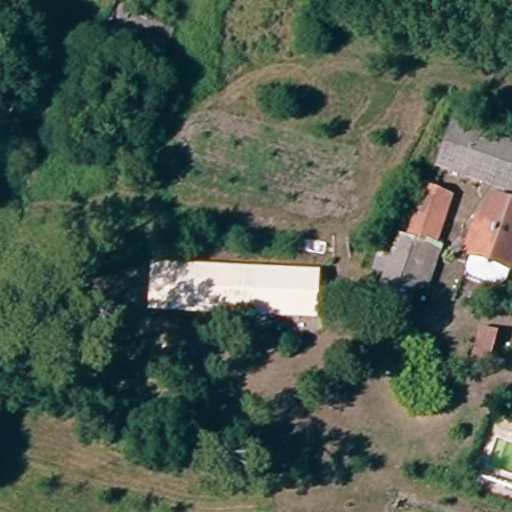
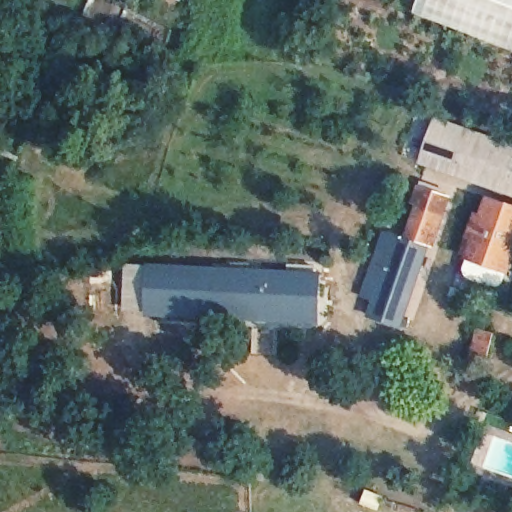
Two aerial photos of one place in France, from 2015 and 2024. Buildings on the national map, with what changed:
new [(512,52),(410,13),(416,0),(512,0),(512,52)]
unchanged [(440,128),(512,153),(512,197),(427,170),(440,128)]
unchanged [(424,242),(402,236),(412,205),(407,203),(411,191),(439,199),(424,242)]
unchanged [(458,256),(470,217),(478,220),(483,204),(512,213),(512,249),(505,270),(458,256)]
unchanged [(418,288),(410,285),(400,309),(373,301),(392,242),(431,254),(418,288)]
unchanged [(375,272),(366,270),(371,256),(380,259),(375,272)]
unchanged [(313,317),(151,310),(154,272),(315,277),(313,317)]

